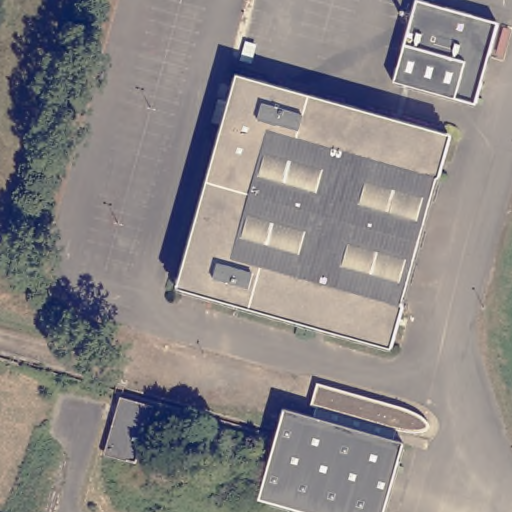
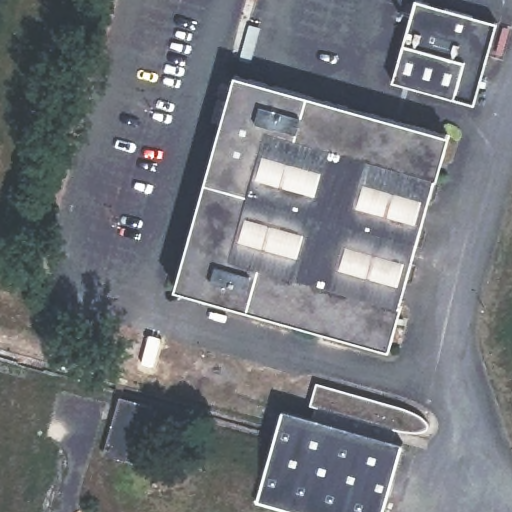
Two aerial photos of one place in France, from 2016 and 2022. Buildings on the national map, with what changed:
unchanged [(501,19),(478,100),(397,76),(418,0),(436,0),(501,19)]
unchanged [(451,133),(389,347),(173,283),(220,120),(207,116),(214,90),(228,94),(235,69),(451,133)]
unchanged [(136,457),(107,449),(121,402),(124,392),(153,401),(136,457)]
unchanged [(407,442),(387,512),(319,512),(262,496),(283,418),(286,407),(407,442)]

